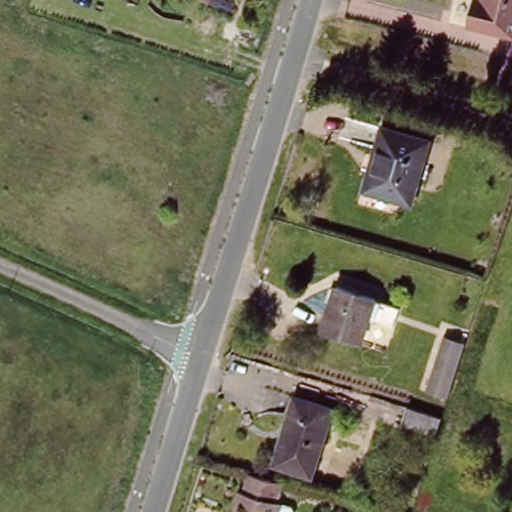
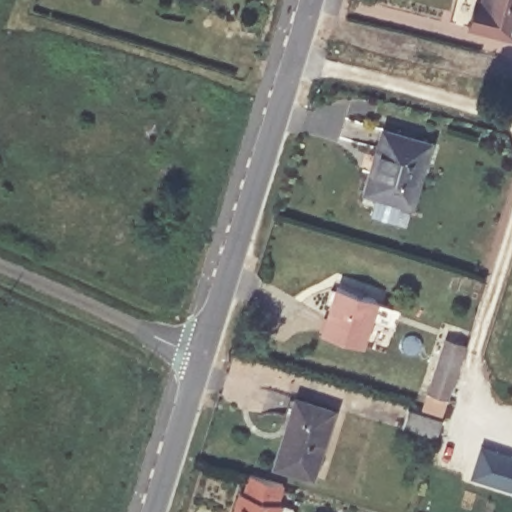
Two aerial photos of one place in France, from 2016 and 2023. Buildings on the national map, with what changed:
unchanged [(512,29),(511,30),(467,18),(472,0),(512,0),(512,29)]
unchanged [(372,161),(381,127),(428,142),(410,205),(370,193),(363,191),(372,161)]
unchanged [(335,281),(375,293),(360,340),(320,327),(335,281)]
unchanged [(426,380),(440,338),(460,345),(447,386),(444,396),(423,389),(426,380)]
unchanged [(273,465),(286,425),(290,426),(300,400),(332,410),(310,477),(273,465)]
unchanged [(441,417),(435,435),(401,424),(406,407),(441,417)]
new [(469,476),(480,442),(512,455),(512,489),(511,489),(469,476)]
unchanged [(276,503),(280,504),(290,507),(292,512),(233,512),(238,492),(242,493),(247,475),(281,485),(276,503)]

